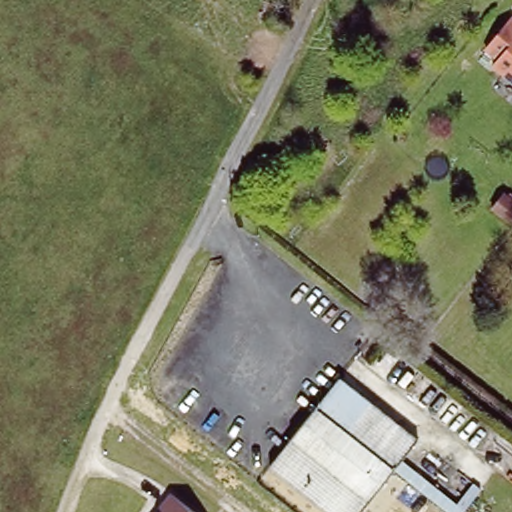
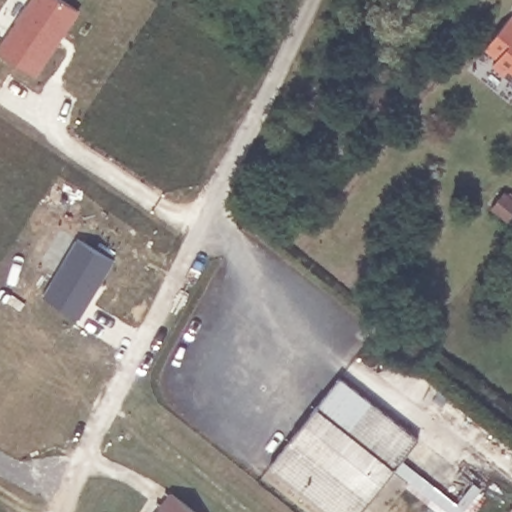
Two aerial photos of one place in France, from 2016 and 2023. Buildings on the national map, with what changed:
new [(0,51),(0,50),(33,0),(64,0),(82,12),(37,77),(0,51)]
unchanged [(498,57),(485,46),(510,15),(512,17),(512,77),(493,62),(498,57)]
unchanged [(512,212),(502,224),(483,209),(495,195),(512,208),(512,212)]
new [(77,239),(115,261),(80,317),(44,295),(77,239)]
unchanged [(416,440),(360,512),(332,512),(270,464),(337,379),(416,440)]
unchanged [(196,512),(156,512),(171,492),(196,512)]

